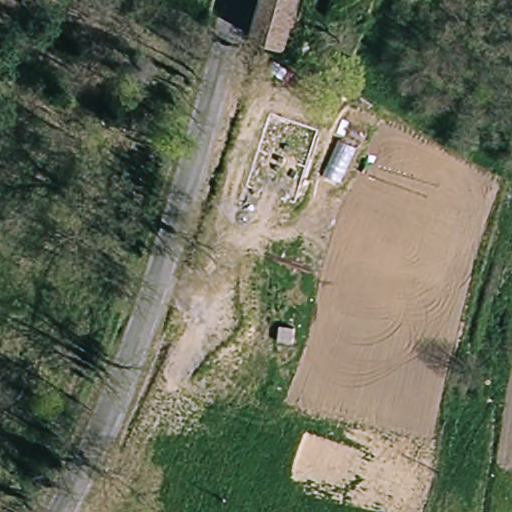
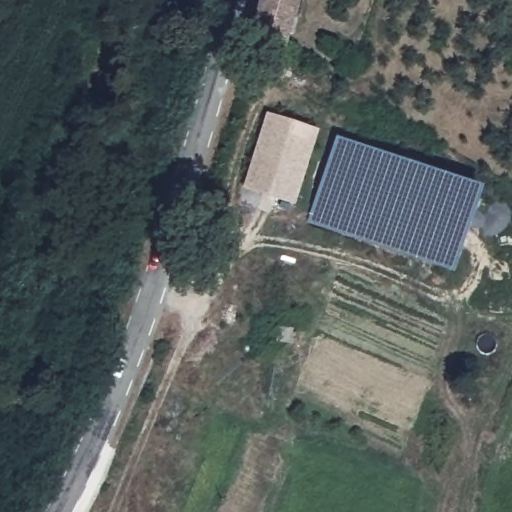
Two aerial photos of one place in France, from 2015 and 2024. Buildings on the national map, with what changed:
unchanged [(263,0),(300,0),(291,46),(255,34),(263,0)]
new [(272,112),(321,126),(301,200),(251,187),(272,112)]
new [(454,271),(307,224),(336,136),(483,185),(454,271)]

